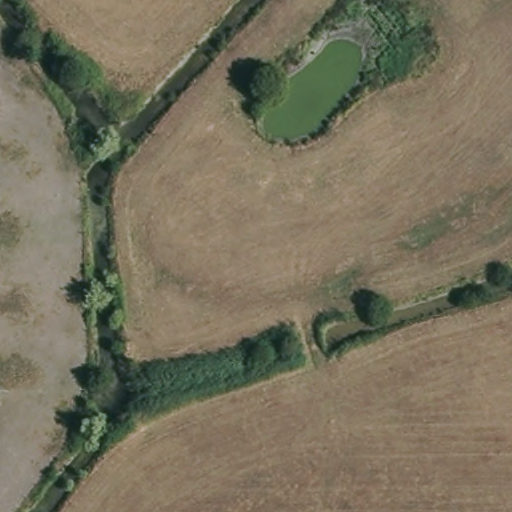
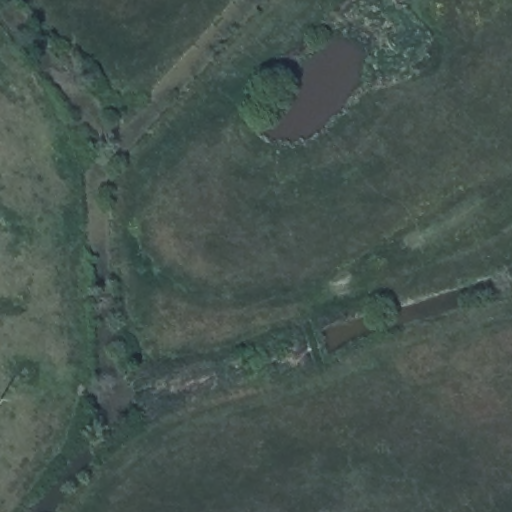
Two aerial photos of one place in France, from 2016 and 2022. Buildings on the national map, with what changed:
[]

